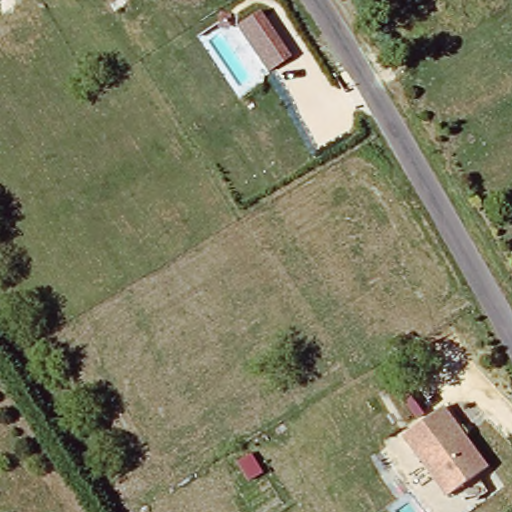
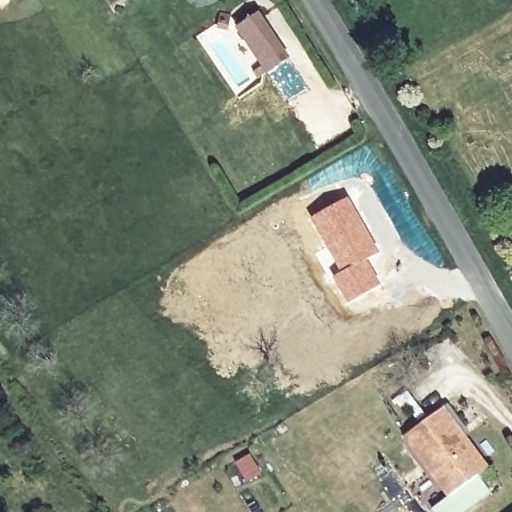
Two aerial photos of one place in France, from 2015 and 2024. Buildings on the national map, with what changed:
unchanged [(260,11),(292,58),(268,75),(237,28),(260,11)]
new [(349,196),(380,252),(367,259),(340,272),(310,219),(349,196)]
new [(340,272),(367,259),(381,283),(347,303),(333,276),(340,272)]
unchanged [(410,440),(450,411),(494,470),(453,500),(410,440)]

